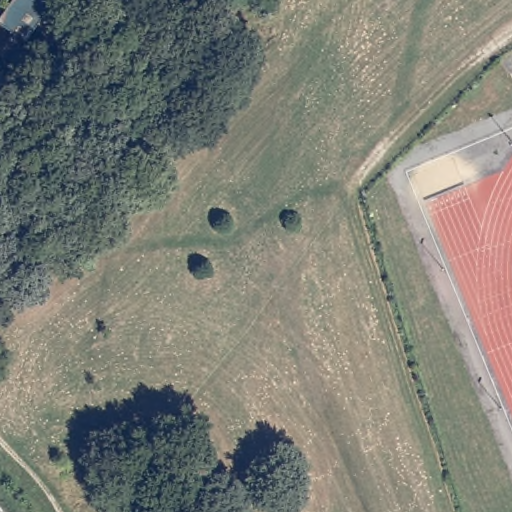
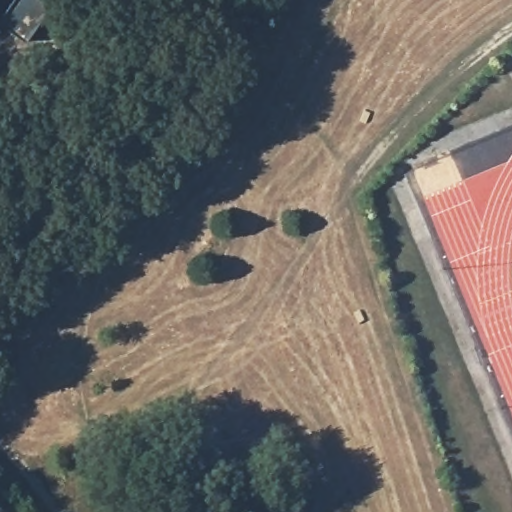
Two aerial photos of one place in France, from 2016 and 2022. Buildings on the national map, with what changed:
unchanged [(25,40),(0,21),(0,17),(12,0),(45,0),(50,4),(47,9),(35,26),(25,40)]

